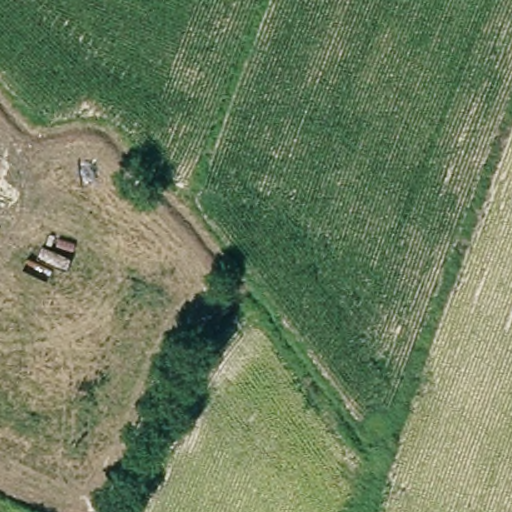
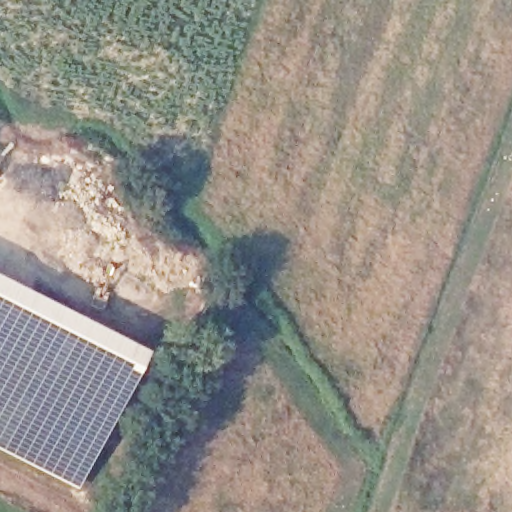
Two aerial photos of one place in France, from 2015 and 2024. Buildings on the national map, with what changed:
new [(80,489),(0,448),(0,276),(149,351),(80,489)]

